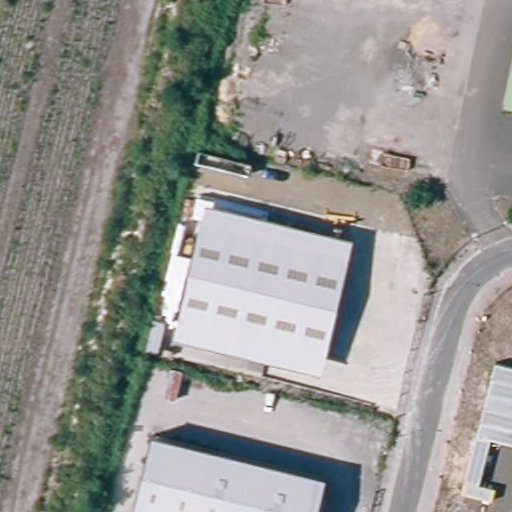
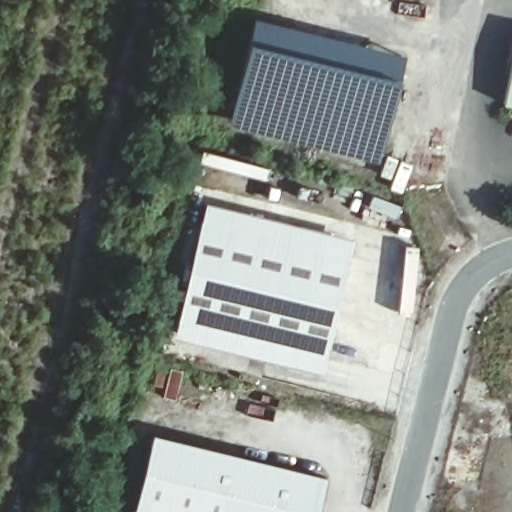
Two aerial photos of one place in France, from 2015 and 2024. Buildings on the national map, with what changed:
new [(234,94),(254,18),(312,32),(407,53),(403,79),(391,129),(379,161),(228,125),(234,94)]
unchanged [(507,109),(512,85),(512,111),(507,109)]
new [(386,155),(411,165),(401,193),(389,188),(391,179),(379,175),(386,155)]
unchanged [(322,373),(175,338),(204,204),(353,238),(322,373)]
unchanged [(134,509),(152,434),(326,476),(318,512),(133,512),(134,509)]

